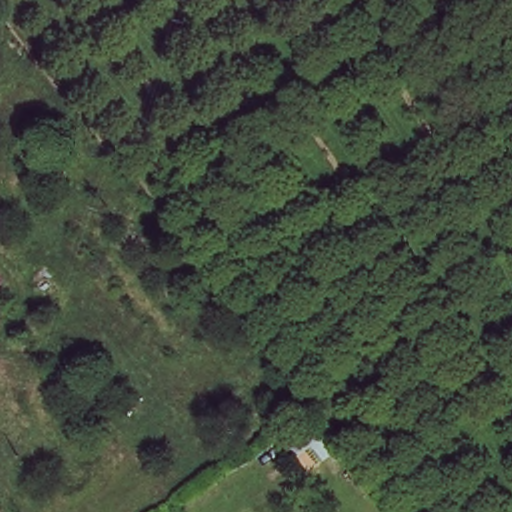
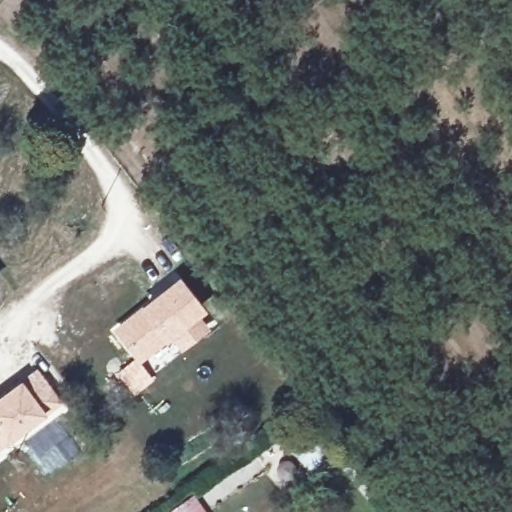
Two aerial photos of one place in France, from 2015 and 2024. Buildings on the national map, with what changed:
new [(138,308),(179,276),(207,311),(199,317),(209,330),(179,353),(170,340),(138,363),(112,329),(138,308)]
new [(20,381),(35,369),(63,405),(46,417),(5,445),(0,448),(0,394),(20,381)]
new [(205,512),(167,512),(194,495),(205,512)]

